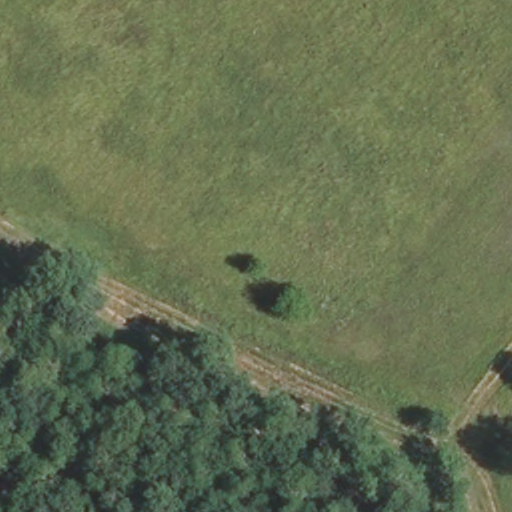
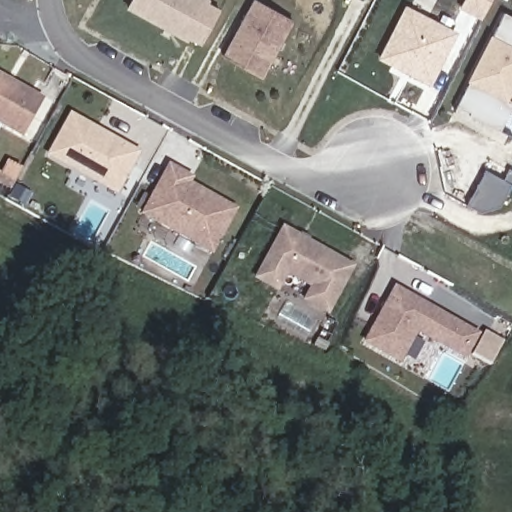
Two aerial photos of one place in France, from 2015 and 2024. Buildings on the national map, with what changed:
new [(202,0),(208,3),(207,6),(220,13),(202,46),(189,39),(187,41),(130,9),(135,0),(202,0)]
new [(255,1),(293,23),(262,79),(223,57),(255,1)]
new [(408,11),(456,37),(431,85),(382,60),(408,11)]
new [(512,115),(499,138),(455,115),(505,18),(512,22),(512,96),(507,105),(512,108),(512,115)]
new [(43,100),(23,136),(0,123),(0,76),(43,100)]
new [(139,154),(117,194),(49,156),(71,116),(139,154)]
new [(481,216),(467,208),(487,172),(493,161),(511,171),(512,172),(512,190),(500,211),(481,216)]
new [(185,174),(193,179),(191,184),(182,179),(237,210),(213,254),(143,215),(170,166),(185,174)]
new [(353,270),(328,315),(306,302),(313,289),(288,274),(278,292),(257,280),(285,231),(353,270)]
new [(395,291),(478,337),(465,361),(416,334),(399,365),(365,346),(395,291)]

